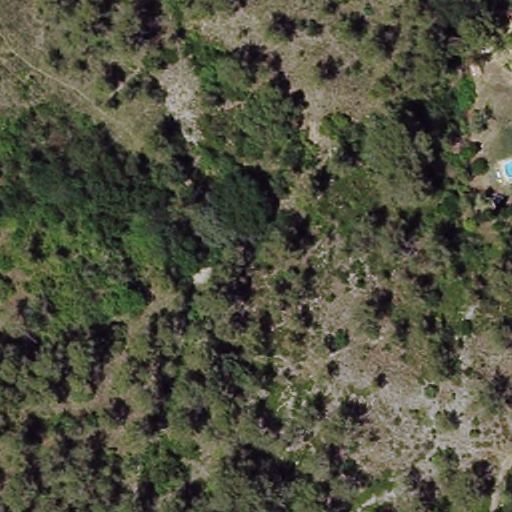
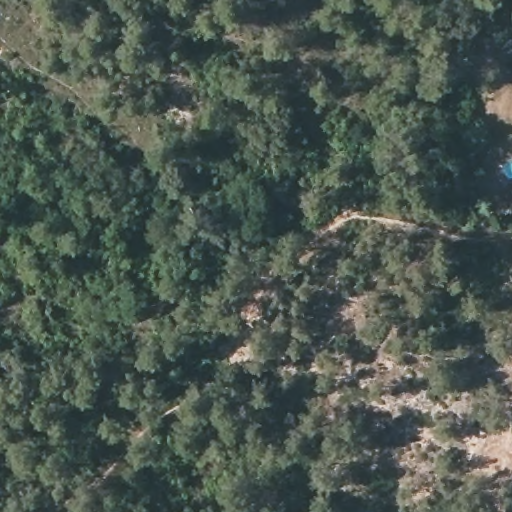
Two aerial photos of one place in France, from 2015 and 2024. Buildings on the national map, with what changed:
[]

